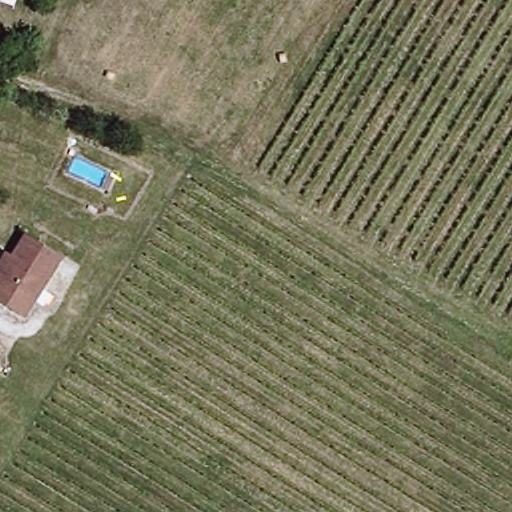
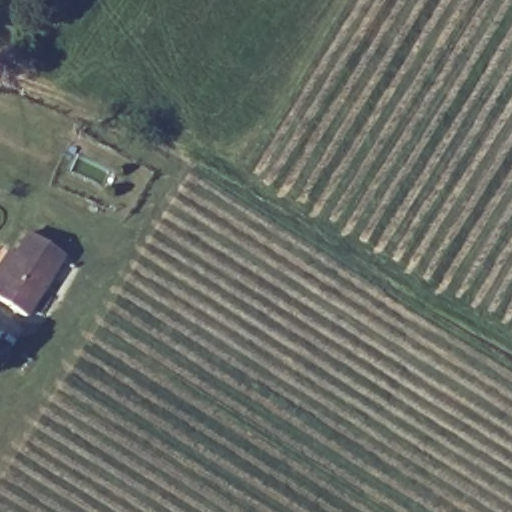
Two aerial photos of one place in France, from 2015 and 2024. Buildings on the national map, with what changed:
unchanged [(22,315),(0,302),(0,272),(24,234),(59,255),(22,315)]

